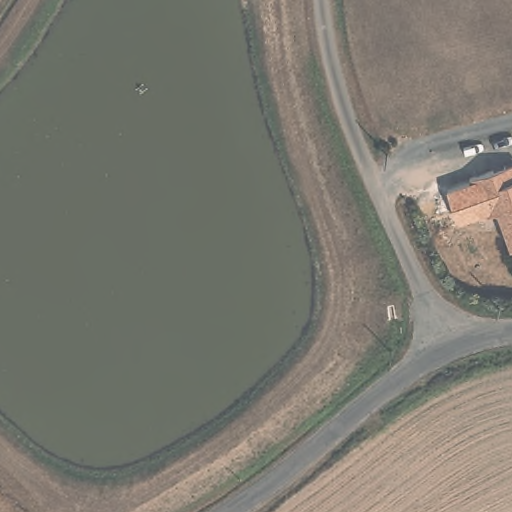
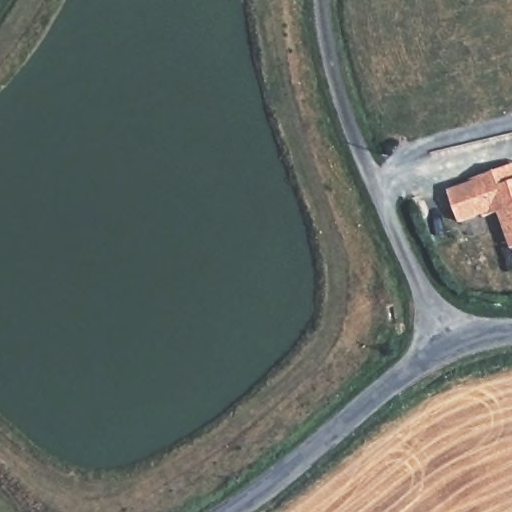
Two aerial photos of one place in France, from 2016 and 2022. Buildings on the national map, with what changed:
unchanged [(501,212),(485,216),(475,178),(499,171),(512,167),(512,250),(504,222),(501,212)]
unchanged [(485,214),(459,221),(447,189),(475,178),(485,214)]

